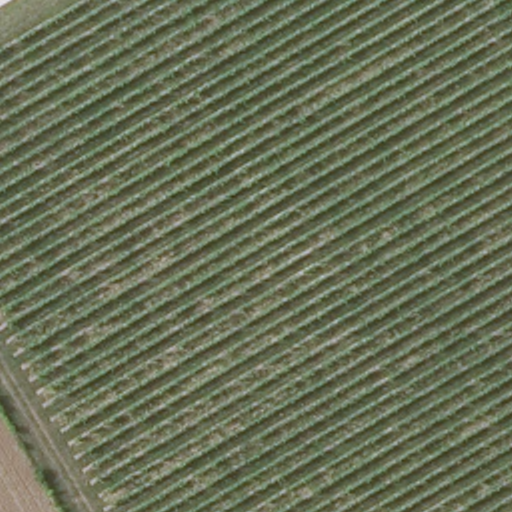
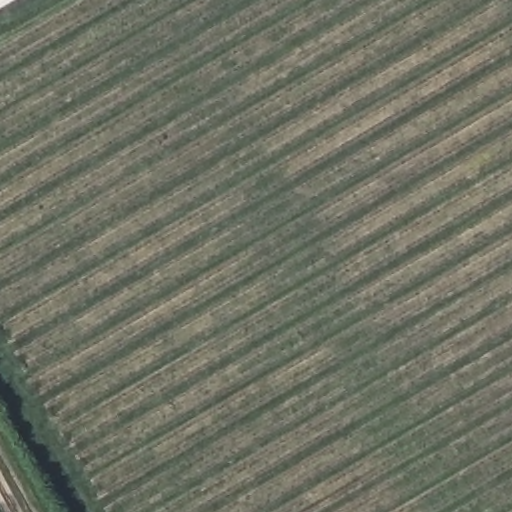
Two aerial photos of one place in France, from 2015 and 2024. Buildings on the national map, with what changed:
[]

